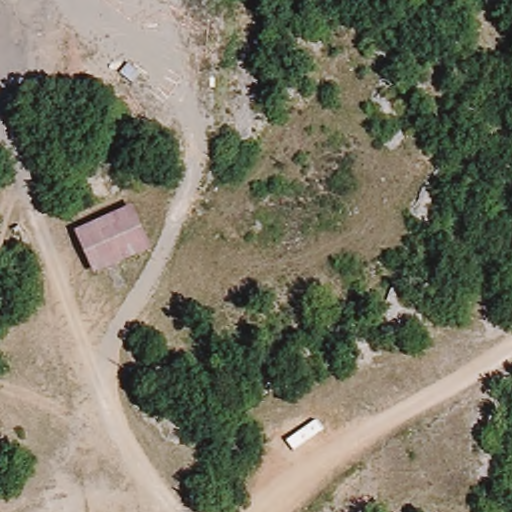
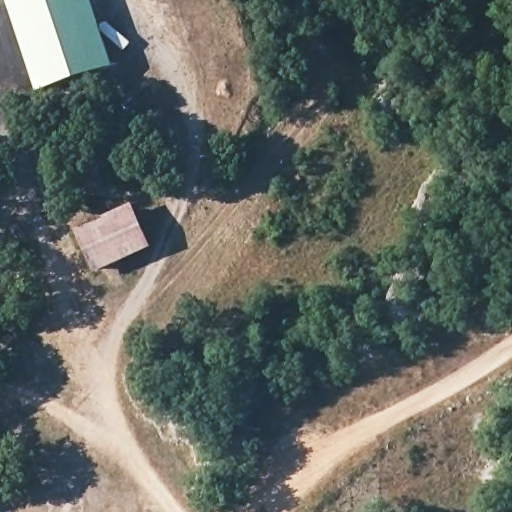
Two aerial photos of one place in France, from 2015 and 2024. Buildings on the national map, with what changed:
new [(42,92),(10,0),(92,0),(113,64),(42,92)]
demolished [(66,34),(62,84),(35,82),(39,33),(66,34)]
unchanged [(147,248),(92,272),(74,223),(130,203),(147,248)]

